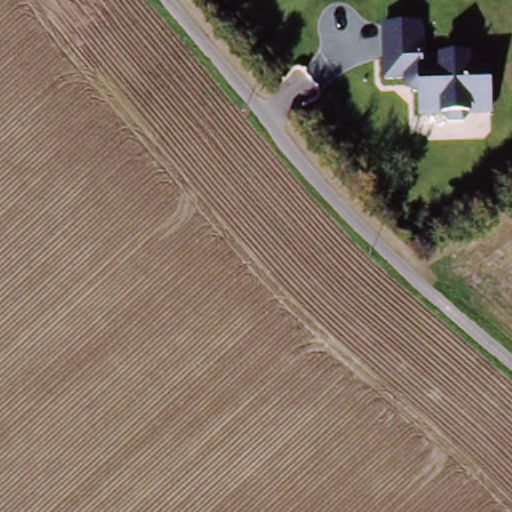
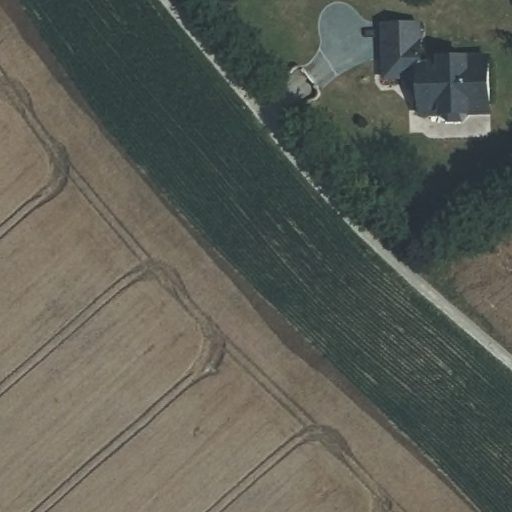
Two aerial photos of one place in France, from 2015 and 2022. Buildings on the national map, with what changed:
unchanged [(440,107),(421,108),(419,92),(412,91),(406,86),(405,78),(384,79),(382,26),(418,25),(419,64),(430,64),(430,59),(487,58),(488,108),(468,108),(467,115),(461,122),(448,120),(441,114),(440,107)]

